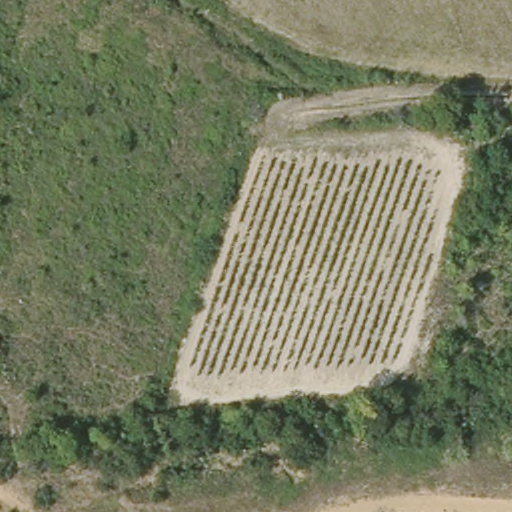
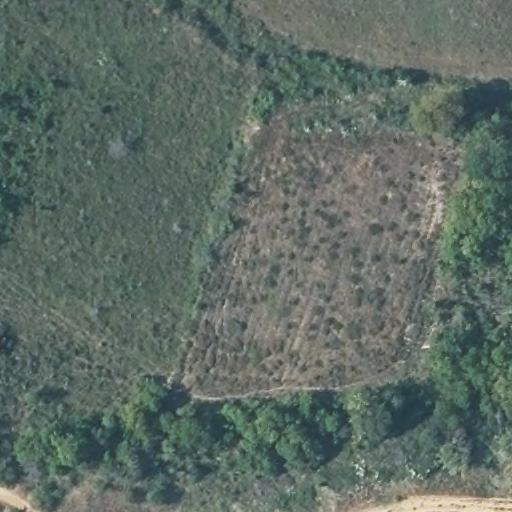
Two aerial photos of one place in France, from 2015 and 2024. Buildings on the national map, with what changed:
unchanged [(0,338),(3,339),(0,348),(0,338)]

